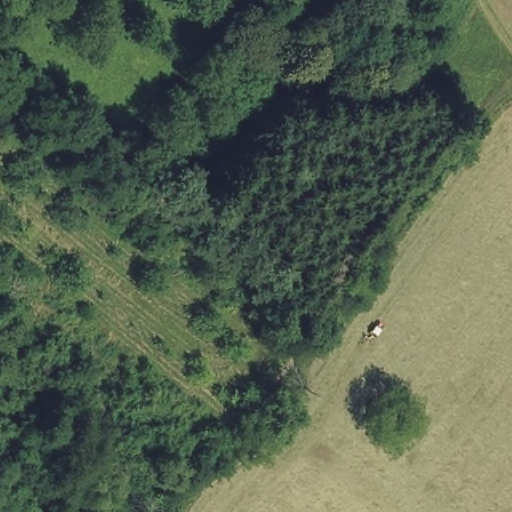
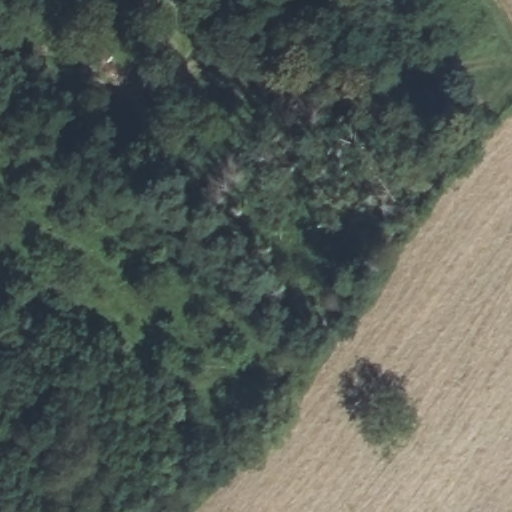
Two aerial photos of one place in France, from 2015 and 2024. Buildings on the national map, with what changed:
[]

